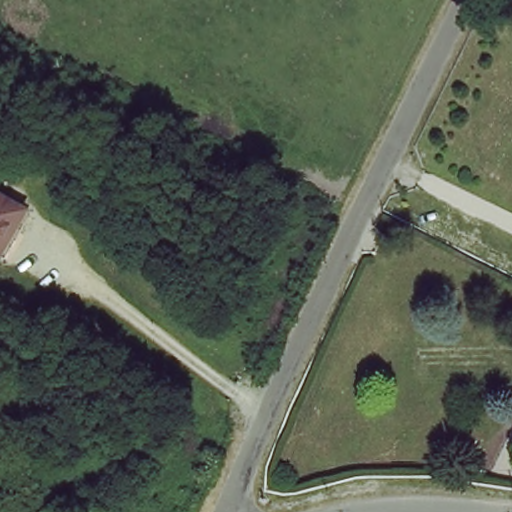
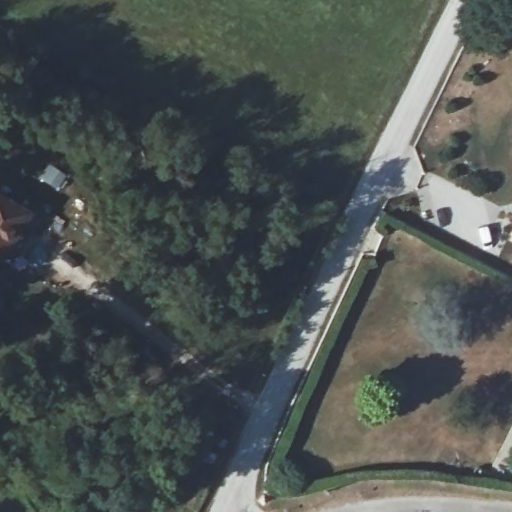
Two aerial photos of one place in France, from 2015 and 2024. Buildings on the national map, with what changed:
unchanged [(25,210),(2,256),(0,255),(0,197),(25,210)]

